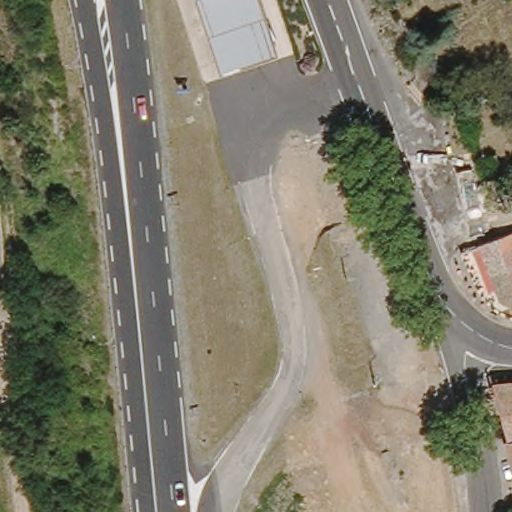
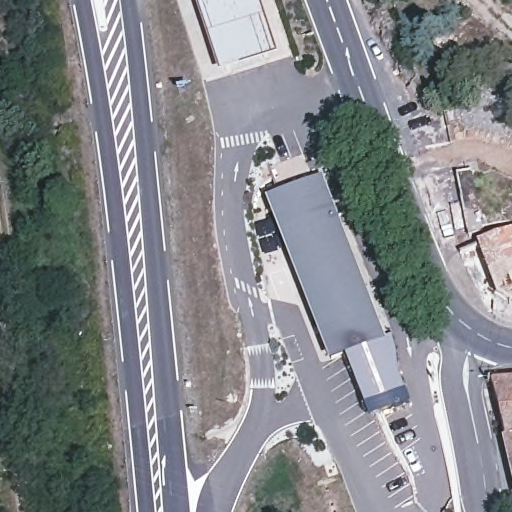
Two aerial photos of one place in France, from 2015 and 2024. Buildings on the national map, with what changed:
unchanged [(224,82),(197,3),(206,0),(259,0),(280,61),(224,82)]
demolished [(318,209),(311,195),(303,177),(308,174),(305,165),(332,155),(340,177),(349,196),(318,209)]
unchanged [(467,234),(455,171),(470,170),(480,232),(467,234)]
new [(387,339),(329,362),(267,197),(324,176),(387,339)]
unchanged [(478,247),(477,239),(502,227),(512,226),(512,308),(495,294),(478,247)]
new [(375,344),(387,339),(392,337),(397,353),(398,375),(412,406),(370,421),(345,356),(375,344)]
unchanged [(487,375),(512,374),(512,430),(495,429),(487,375)]
unchanged [(495,429),(512,430),(512,495),(508,496),(495,429)]

